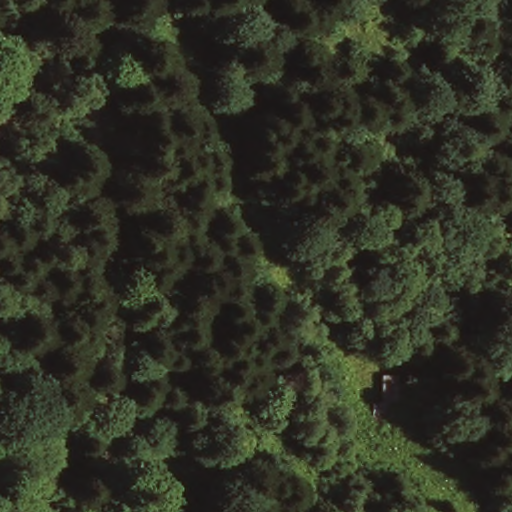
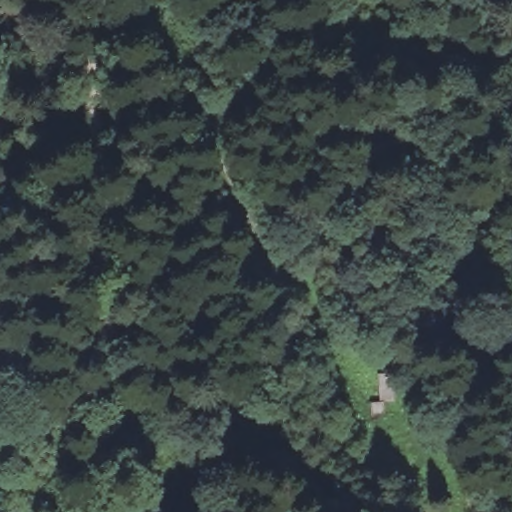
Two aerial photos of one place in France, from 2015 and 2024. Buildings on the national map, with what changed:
unchanged [(374,373),(392,374),(395,407),(377,406),(374,373)]
unchanged [(437,466),(408,472),(399,427),(428,421),(437,466)]

